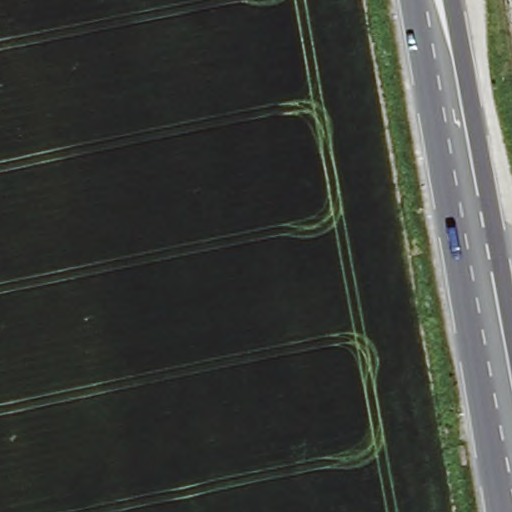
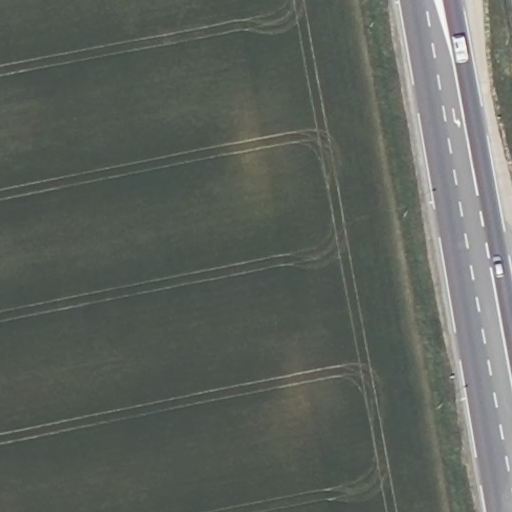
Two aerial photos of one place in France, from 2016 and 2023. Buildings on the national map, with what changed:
[]

